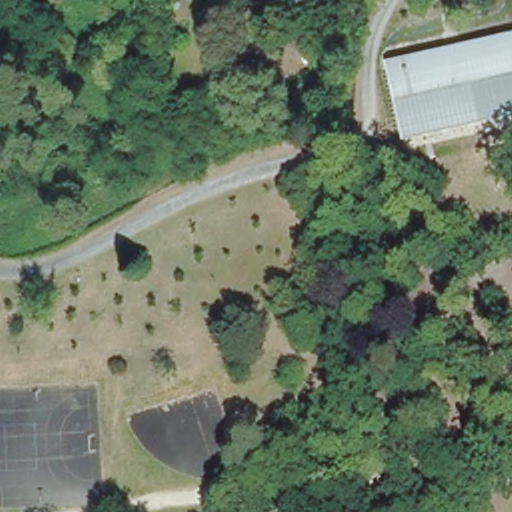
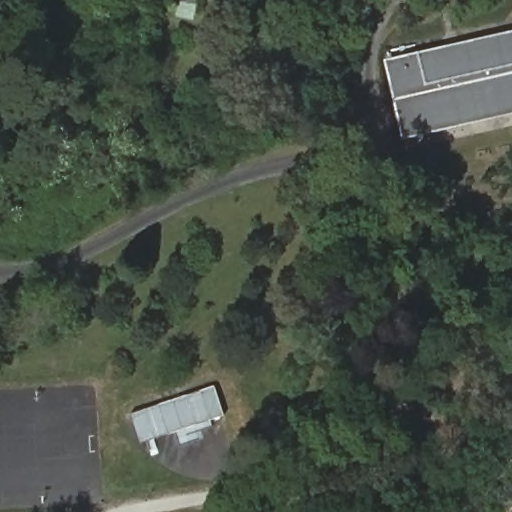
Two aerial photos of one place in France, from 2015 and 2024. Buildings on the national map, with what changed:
unchanged [(385,59),(512,29),(512,113),(403,138),(385,59)]
new [(212,387),(222,416),(141,443),(131,414),(212,387)]

